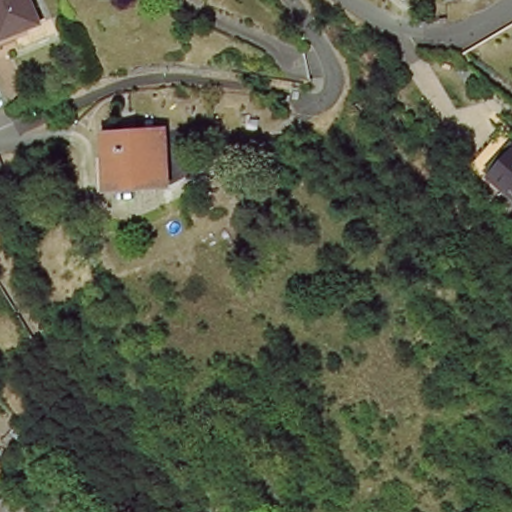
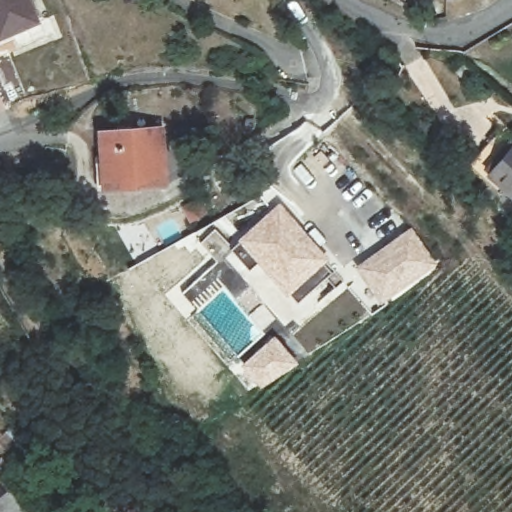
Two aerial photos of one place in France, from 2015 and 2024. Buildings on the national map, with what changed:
unchanged [(38,21),(0,36),(0,0),(31,0),(38,21)]
unchanged [(98,181),(103,120),(167,125),(163,179),(162,185),(150,185),(98,181)]
unchanged [(512,199),(485,175),(512,145),(512,199)]
new [(240,244),(238,240),(278,204),(328,260),(326,262),(343,281),(335,290),(325,278),(296,304),(287,295),(257,263),(250,270),(231,250),(240,244)]
new [(411,225),(437,266),(372,306),(347,267),(411,225)]
new [(220,259),(246,289),(232,301),(222,289),(196,311),(181,294),(220,259)]
new [(275,336),(299,364),(261,389),(241,364),(275,336)]
unchanged [(10,465),(5,469),(0,474),(0,454),(6,462),(10,465)]
unchanged [(2,485),(24,512),(0,512),(0,487),(2,485)]

